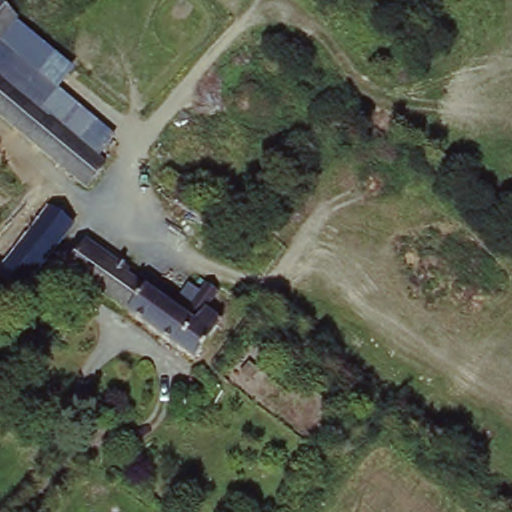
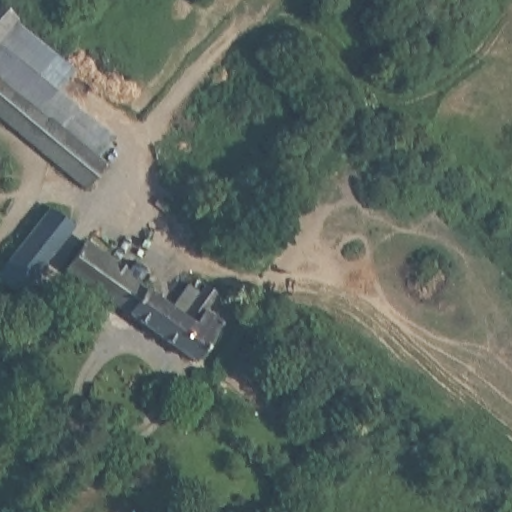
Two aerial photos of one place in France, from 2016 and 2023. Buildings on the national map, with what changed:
unchanged [(0,32),(0,10),(11,19),(0,32)]
unchanged [(14,15),(18,18),(15,21),(75,70),(60,88),(114,135),(96,158),(47,118),(41,120),(8,93),(0,87),(0,32),(11,19),(14,15)]
unchanged [(41,120),(47,118),(103,163),(85,186),(72,175),(33,144),(0,118),(0,87),(8,93),(41,120)]
unchanged [(42,257),(12,292),(0,282),(0,266),(13,250),(47,209),(69,227),(42,257)]
unchanged [(83,242),(124,273),(121,277),(177,320),(201,291),(212,300),(200,315),(219,329),(189,366),(157,342),(60,269),(83,242)]
unchanged [(362,436),(354,429),(362,419),(371,425),(362,436)]

